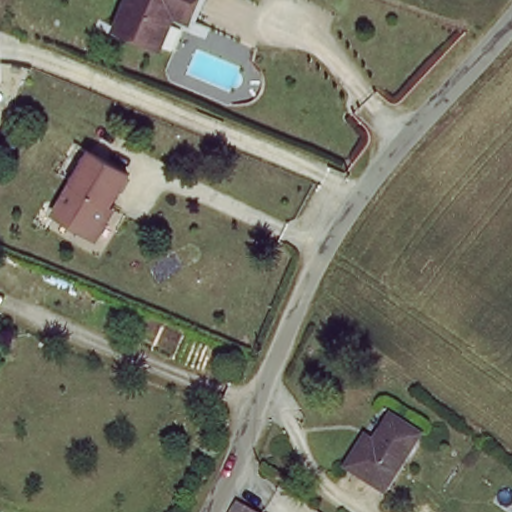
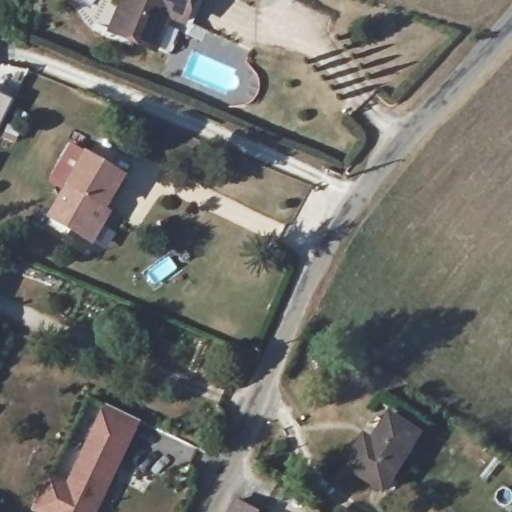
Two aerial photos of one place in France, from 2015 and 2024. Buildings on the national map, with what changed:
unchanged [(203,0),(202,2),(194,22),(184,19),(170,51),(113,28),(124,0),(203,0)]
unchanged [(95,243),(88,239),(52,215),(91,152),(128,173),(110,204),(117,208),(95,243)]
new [(101,411),(105,404),(142,421),(138,429),(98,512),(33,512),(32,511),(49,473),(69,481),(101,411)]
unchanged [(359,442),(363,434),(375,442),(392,416),(419,434),(398,469),(359,442)]
unchanged [(398,469),(384,491),(345,466),(359,442),(398,469)]
unchanged [(239,499),(264,510),(263,512),(232,512),(239,499)]

